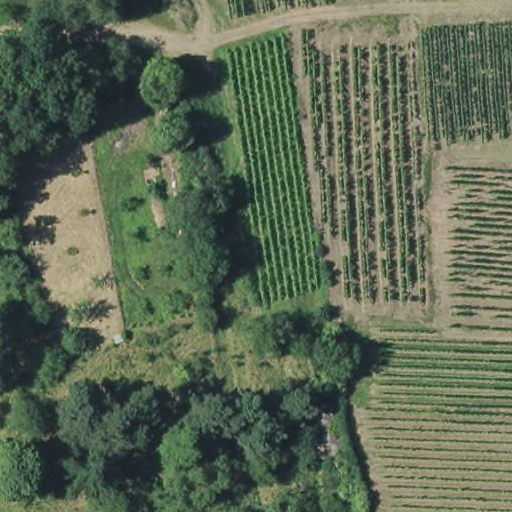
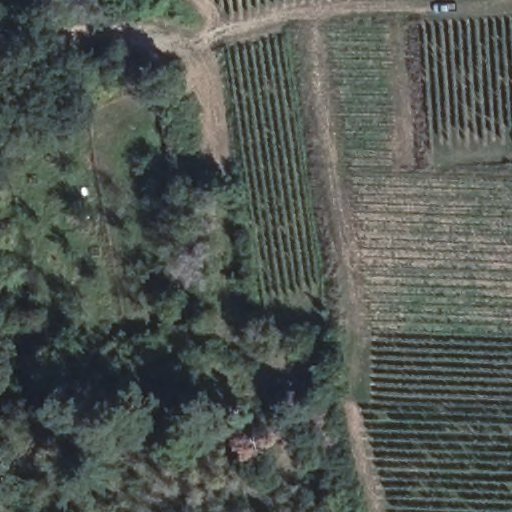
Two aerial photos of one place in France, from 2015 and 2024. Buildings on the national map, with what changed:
unchanged [(106,146),(95,125),(135,106),(144,127),(106,146)]

